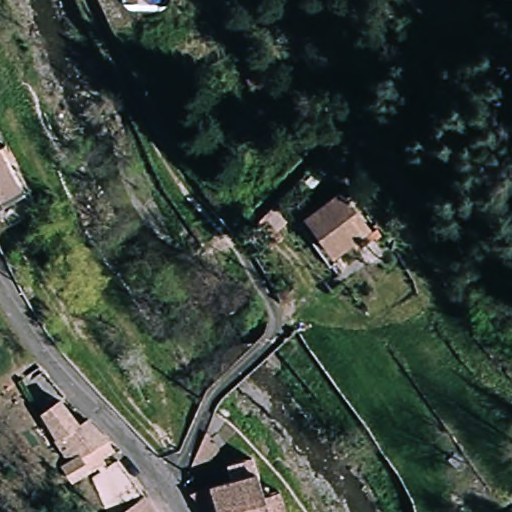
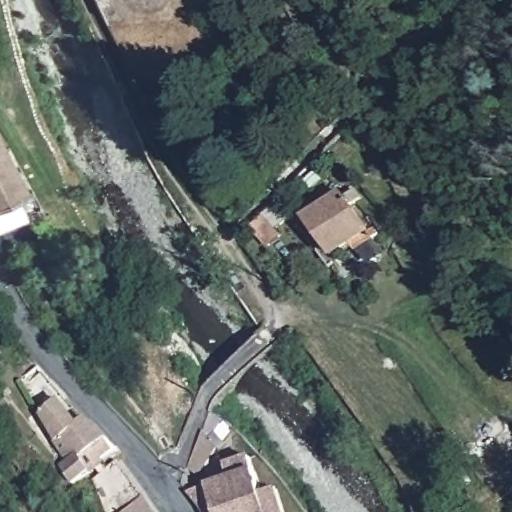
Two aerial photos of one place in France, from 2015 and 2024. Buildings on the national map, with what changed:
unchanged [(273,94),(263,82),(280,67),(287,81),(273,94)]
unchanged [(33,205),(0,224),(0,145),(22,176),(27,184),(39,201),(33,205)]
unchanged [(359,253),(352,243),(333,256),(307,220),(355,186),(365,200),(354,209),(370,231),(376,240),(359,253)]
unchanged [(285,236),(303,255),(293,265),(274,246),(285,236)]
unchanged [(16,375),(28,366),(55,398),(86,428),(110,453),(61,485),(53,471),(50,473),(48,470),(55,465),(51,457),(56,453),(47,440),(49,439),(34,415),(16,375)]
unchanged [(225,428),(211,445),(218,455),(199,483),(191,477),(189,476),(213,421),(225,428)]
unchanged [(108,463),(118,478),(140,512),(94,512),(83,483),(101,468),(108,463)]
unchanged [(211,481),(242,471),(257,467),(264,490),(280,485),(287,512),(220,512),(211,481)]

